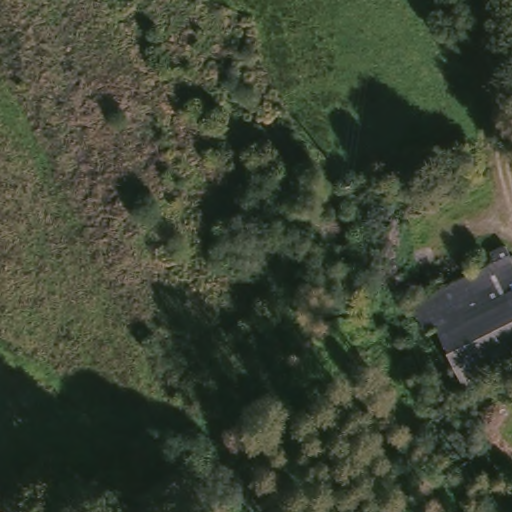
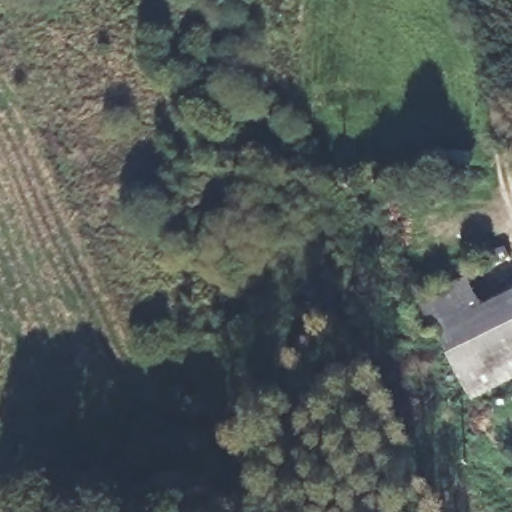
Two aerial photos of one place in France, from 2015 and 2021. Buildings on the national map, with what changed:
unchanged [(481,258),(496,250),(512,283),(512,303),(454,333),(434,292),(485,266),(481,258)]
unchanged [(512,303),(512,344),(472,365),(454,333),(512,303)]
unchanged [(512,376),(485,390),(472,365),(512,344),(512,376)]
unchanged [(14,510),(15,512),(7,512),(14,510)]

